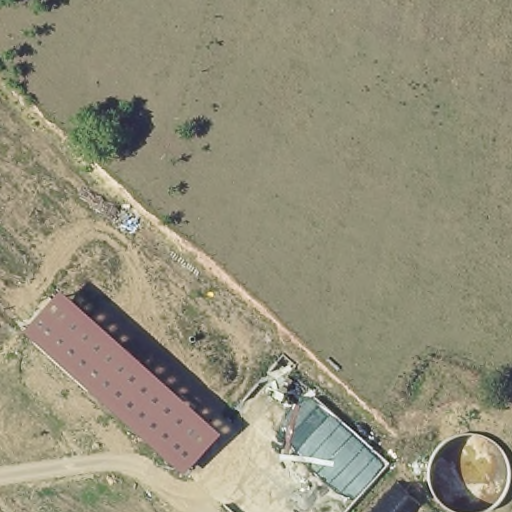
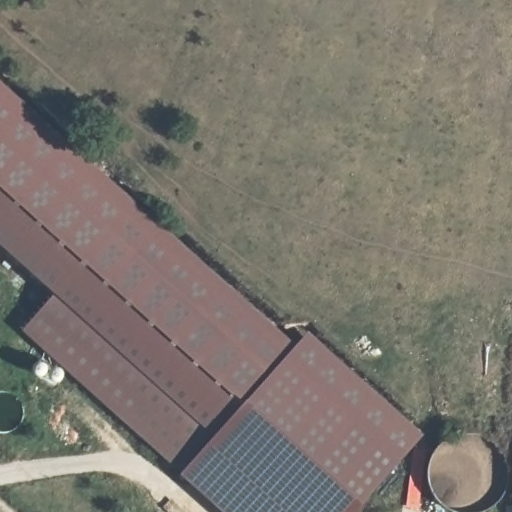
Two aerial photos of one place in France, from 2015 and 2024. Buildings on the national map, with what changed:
new [(0,81),(298,346),(309,331),(423,436),(355,512),(220,512),(182,477),(221,441),(55,296),(0,247),(0,81)]
unchanged [(24,331),(55,296),(221,441),(182,477),(24,331)]

